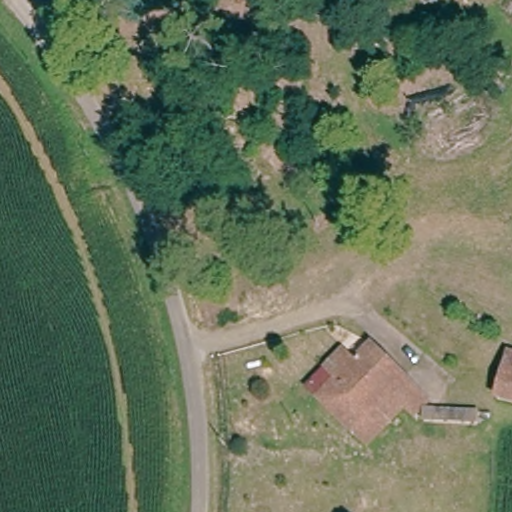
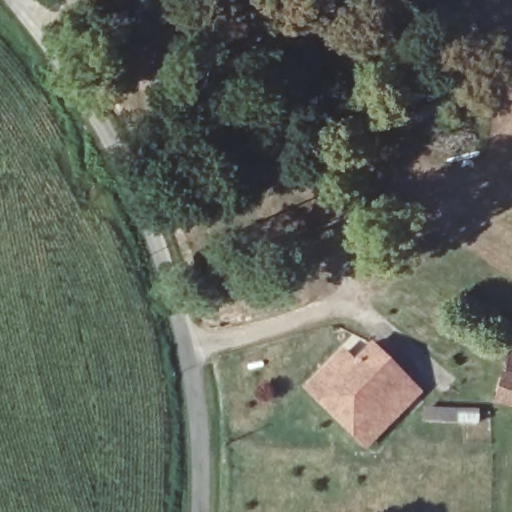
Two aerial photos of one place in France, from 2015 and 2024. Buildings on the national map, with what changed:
unchanged [(385,3),(383,0),(390,0),(385,3)]
unchanged [(303,388),(320,368),(336,382),(368,348),(424,402),(409,418),(398,408),(364,443),(359,440),(303,388)]
unchanged [(497,397),(509,352),(512,352),(512,401),(497,397)]
unchanged [(479,416),(479,433),(460,433),(455,433),(455,439),(439,438),(438,431),(429,431),(418,431),(418,415),(429,415),(459,416),(479,416)]

